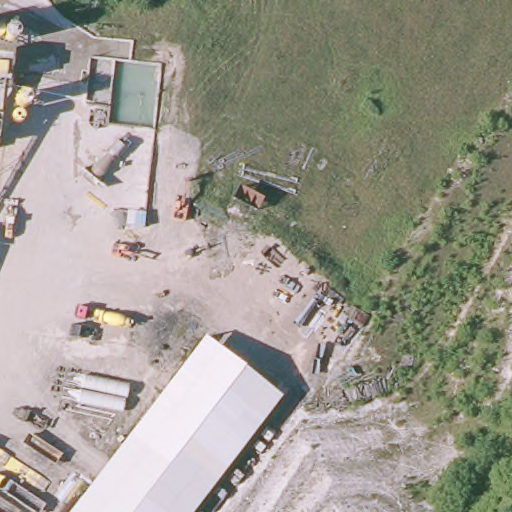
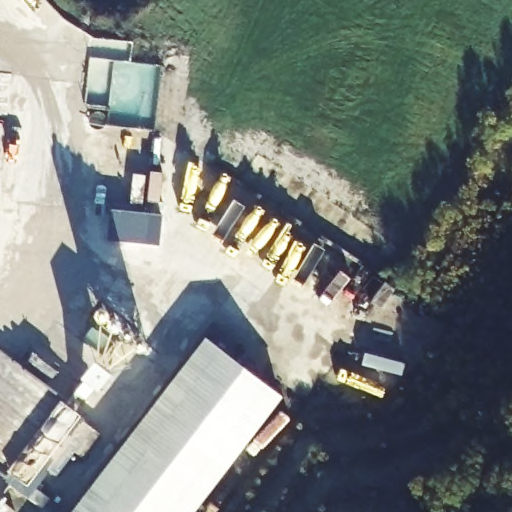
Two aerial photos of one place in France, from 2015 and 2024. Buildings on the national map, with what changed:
new [(165,215),(162,246),(109,241),(111,210),(165,215)]
unchanged [(282,396),(193,512),(69,512),(204,337),(282,396)]

